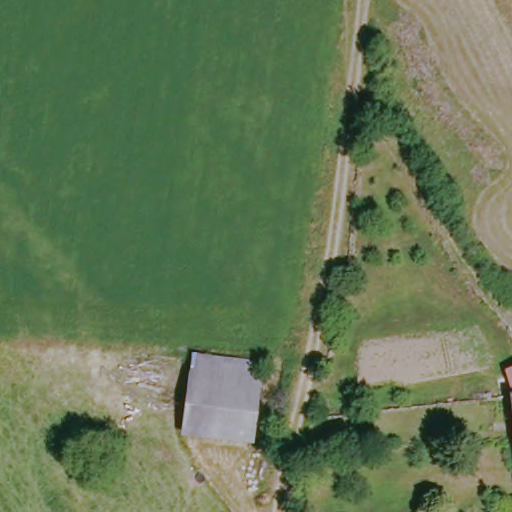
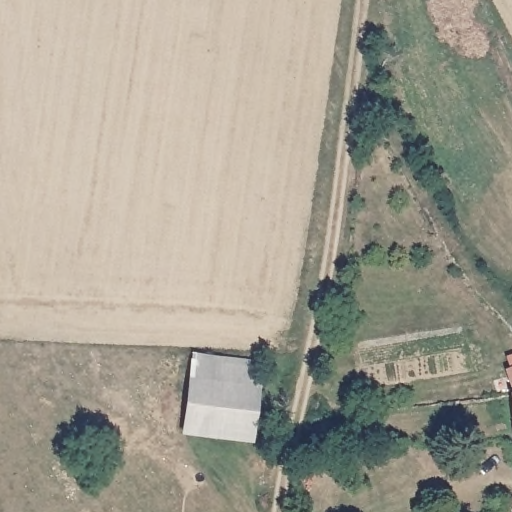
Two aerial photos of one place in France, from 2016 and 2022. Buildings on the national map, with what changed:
unchanged [(248,446),(180,435),(193,361),(258,372),(248,446)]
unchanged [(512,366),(512,382),(506,367),(512,366)]

